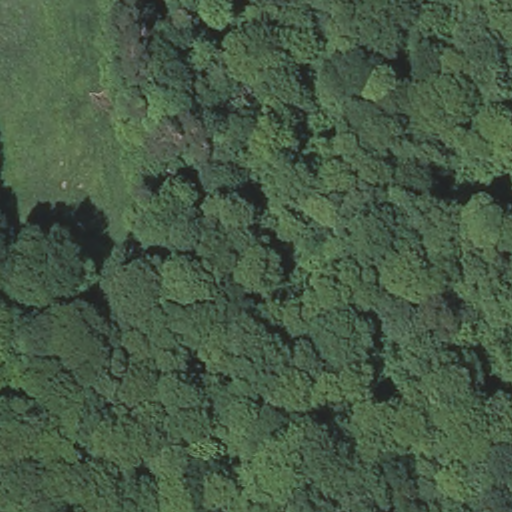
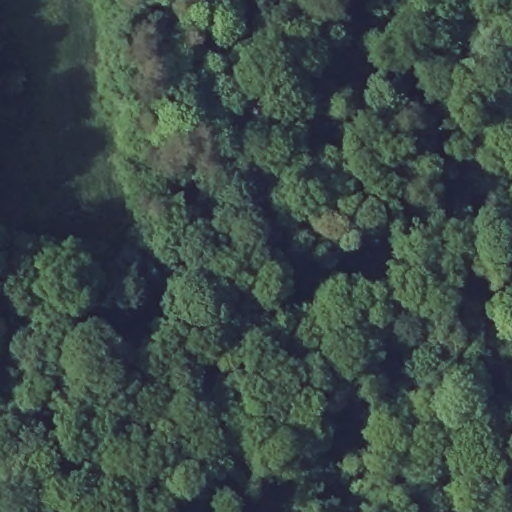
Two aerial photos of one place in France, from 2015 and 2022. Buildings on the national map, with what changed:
unchanged [(163,189),(166,224),(142,224),(137,207),(128,188),(163,189)]

